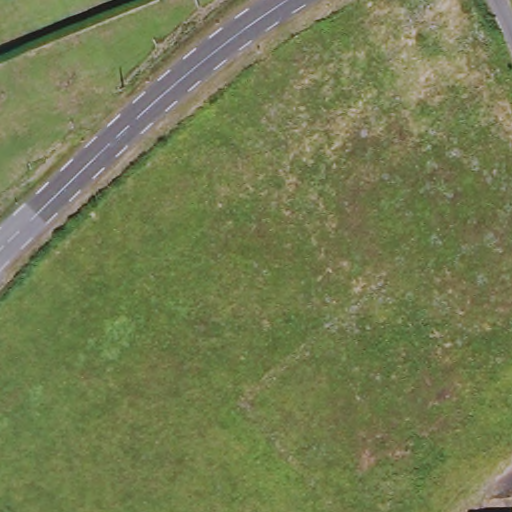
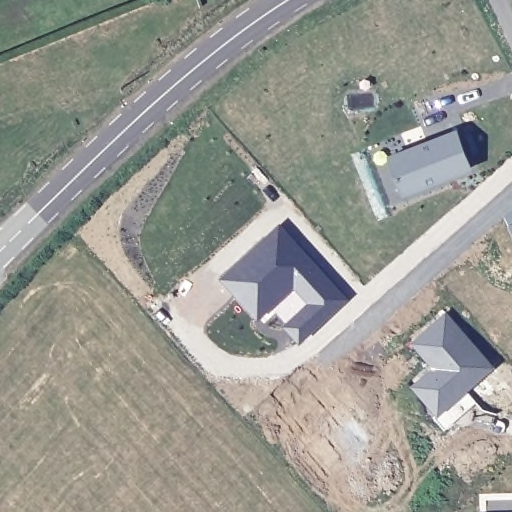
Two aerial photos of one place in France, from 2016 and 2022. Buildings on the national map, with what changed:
new [(458,129),(474,170),(404,195),(390,155),(458,129)]
new [(509,224),(506,216),(512,211),(512,230),(509,224)]
new [(286,324),(294,316),(312,300),(296,283),(279,298),(259,316),(239,295),(223,277),(264,239),(281,225),(296,242),(347,298),(309,332),(301,339),(286,324)]
new [(493,366),(439,413),(414,384),(435,366),(413,341),(447,312),(493,366)]

